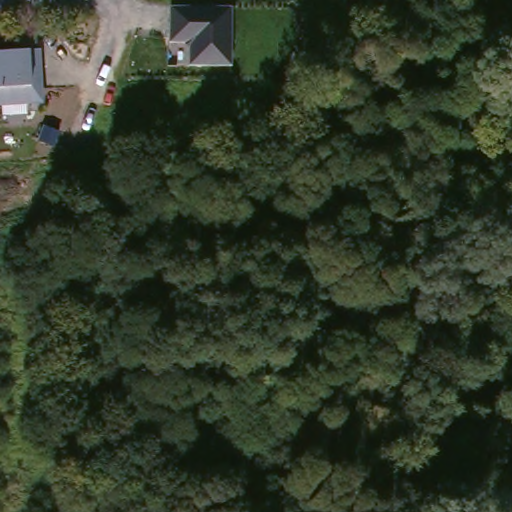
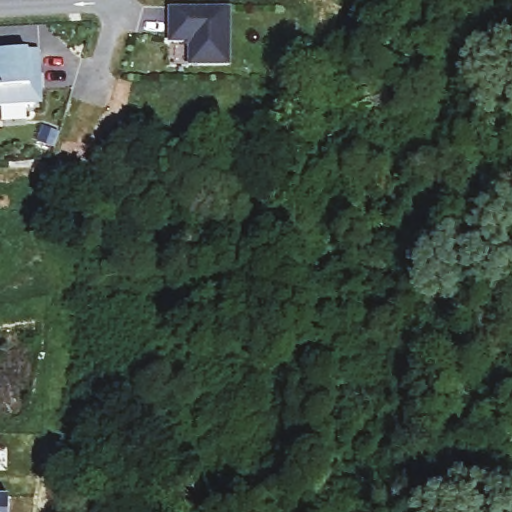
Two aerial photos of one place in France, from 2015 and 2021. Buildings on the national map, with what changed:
unchanged [(170,9),(231,9),(231,66),(188,64),(189,46),(185,43),(170,43),(170,9)]
unchanged [(43,103),(0,106),(0,53),(29,50),(40,49),(43,103)]
new [(10,512),(0,512),(0,495),(11,496),(10,512)]

